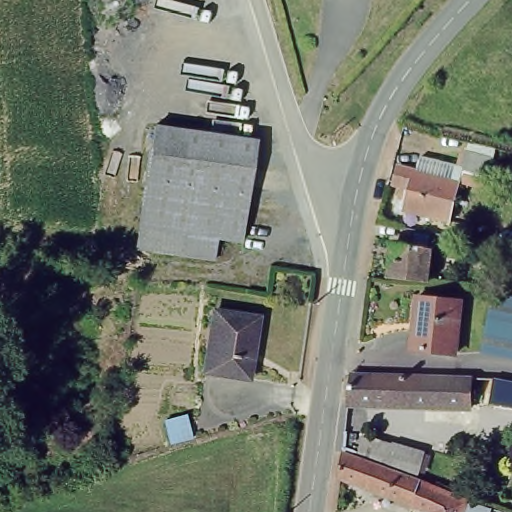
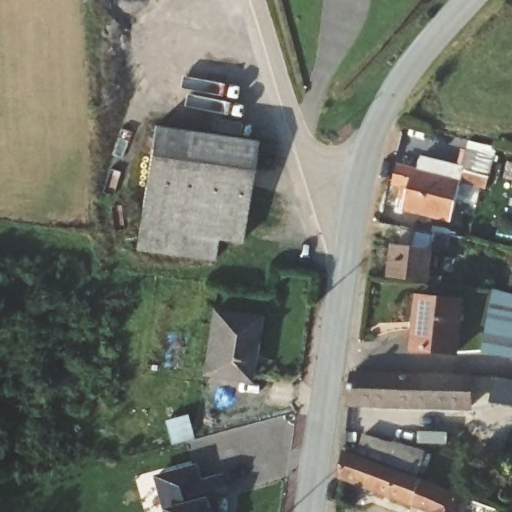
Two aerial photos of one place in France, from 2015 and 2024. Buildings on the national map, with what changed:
unchanged [(255,140),(240,239),(216,235),(212,257),(132,242),(154,119),(255,140)]
unchanged [(492,147),(488,167),(469,162),(473,142),(492,147)]
unchanged [(400,197),(404,181),(398,180),(403,164),(460,179),(452,209),(450,216),(428,211),(408,206),(398,204),(400,197)]
unchanged [(471,226),(468,237),(432,227),(435,217),(471,226)]
unchanged [(426,280),(413,278),(384,276),(387,242),(395,244),(399,220),(424,226),(425,226),(432,227),(426,280)]
unchanged [(480,352),(494,292),(512,299),(512,358),(480,352)]
unchanged [(460,301),(451,352),(407,345),(417,295),(460,301)]
unchanged [(254,313),(242,374),(199,367),(207,322),(209,306),(246,312),(254,313)]
unchanged [(469,377),(467,405),(345,401),(350,372),(469,377)]
unchanged [(489,403),(489,377),(512,379),(512,405),(489,403)]
unchanged [(159,418),(184,409),(193,434),(168,443),(159,418)]
unchanged [(360,430),(407,446),(400,466),(352,448),(360,430)]
unchanged [(352,448),(400,466),(470,492),(462,512),(418,512),(420,507),(332,473),(344,446),(352,448)]
new [(151,475),(196,462),(200,478),(222,472),(228,495),(216,499),(219,512),(160,512),(151,475)]
unchanged [(491,500),(485,512),(462,512),(470,492),(491,500)]

